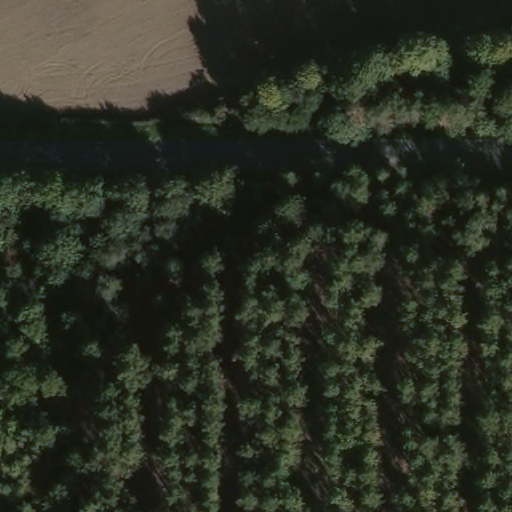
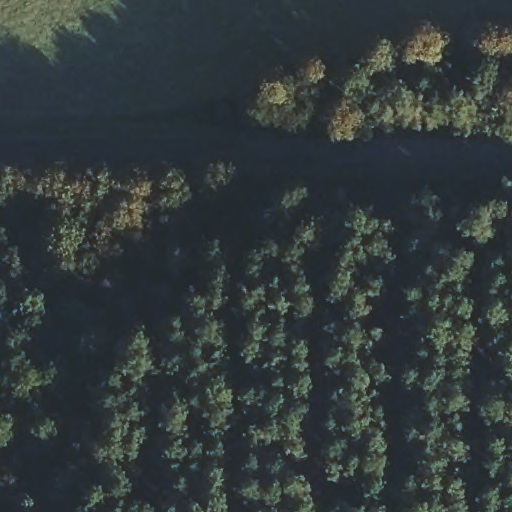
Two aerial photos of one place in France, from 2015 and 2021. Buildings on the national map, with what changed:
[]

